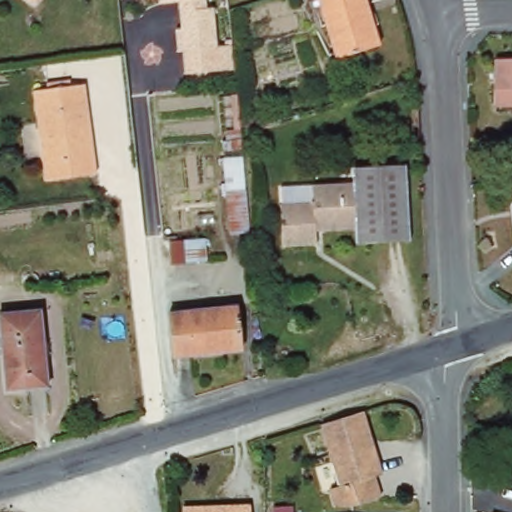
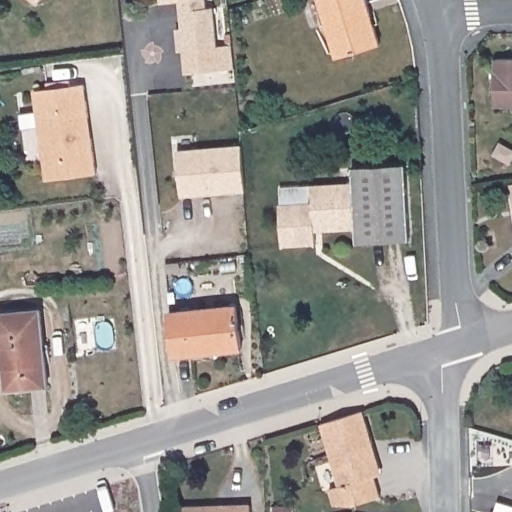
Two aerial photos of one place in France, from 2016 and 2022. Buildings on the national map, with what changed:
unchanged [(40,1),(38,0),(40,0),(40,1)]
unchanged [(186,75),(184,53),(179,53),(176,28),(181,27),(179,2),(160,4),(159,0),(205,0),(207,9),(213,9),(217,47),(232,46),(234,70),(186,75)]
unchanged [(385,51),(341,63),(324,2),(330,0),(369,0),(385,51)]
unchanged [(498,77),(501,76),(501,59),(512,59),(512,107),(499,107),(498,77)]
unchanged [(52,185),(40,95),(54,93),(53,87),(76,84),(77,90),(91,88),(95,122),(98,142),(102,178),(52,185)]
new [(241,145),(246,191),(181,197),(177,152),(241,145)]
unchanged [(415,241),(361,243),(361,229),(321,230),(321,245),(287,246),(286,202),(319,201),(319,185),(359,183),(359,167),(412,165),(415,241)]
unchanged [(53,387),(11,390),(10,371),(9,369),(5,312),(46,309),(49,343),(49,344),(53,387)]
unchanged [(246,355),(178,361),(174,317),(243,311),(246,355)]
unchanged [(382,476),(380,477),(385,497),(358,505),(339,505),(335,489),(345,486),(327,424),(369,411),(378,442),(387,474),(382,476)]
unchanged [(187,512),(187,508),(255,506),(255,512),(187,512)]

